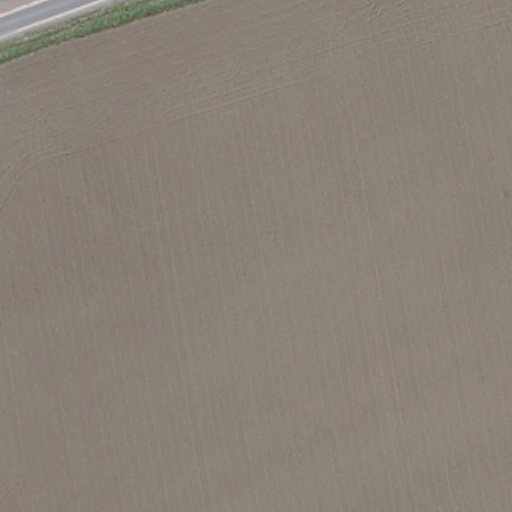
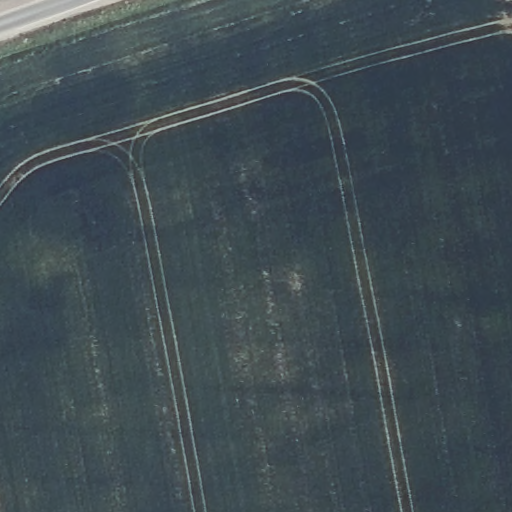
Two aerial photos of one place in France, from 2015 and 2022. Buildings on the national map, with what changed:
[]

